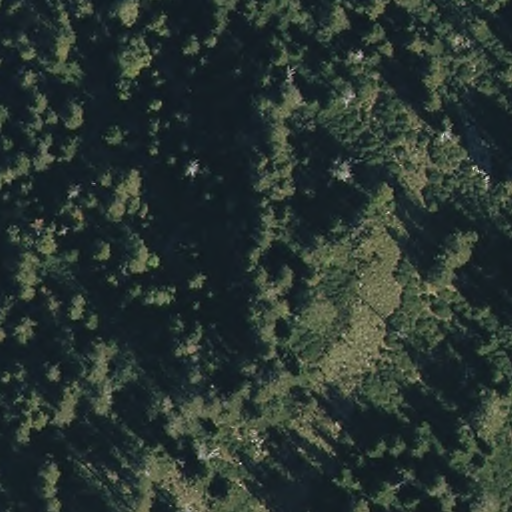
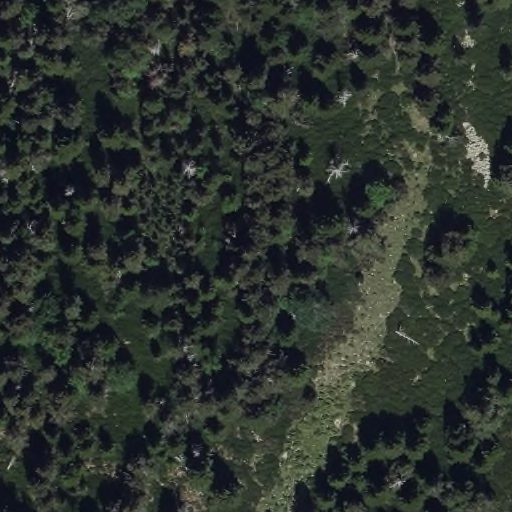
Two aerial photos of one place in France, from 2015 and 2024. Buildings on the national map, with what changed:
[]

